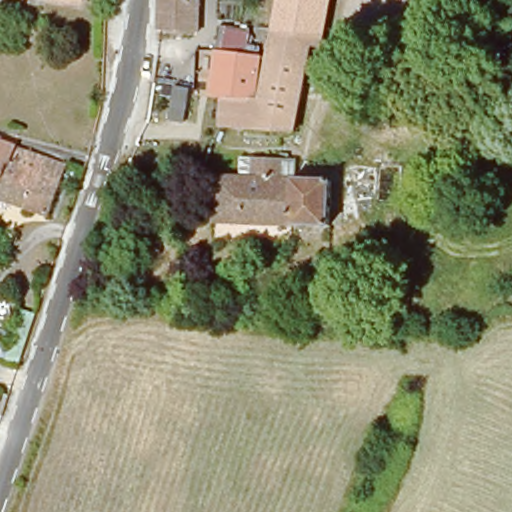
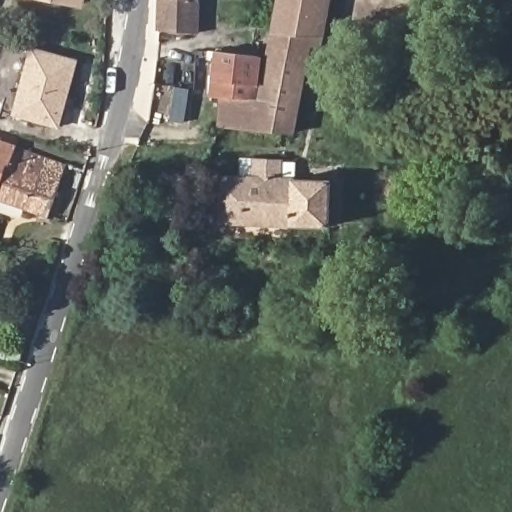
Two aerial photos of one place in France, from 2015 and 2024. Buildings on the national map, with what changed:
unchanged [(52,0),(83,0),(82,6),(52,0)]
unchanged [(198,31),(160,28),(162,0),(199,0),(198,30),(198,31)]
unchanged [(308,46),(271,38),(278,0),(328,0),(319,46),(308,46)]
unchanged [(254,101),(256,101),(259,101),(271,38),(308,46),(292,133),(217,126),(219,98),(254,101)]
new [(30,47),(79,60),(60,129),(12,116),(30,47)]
unchanged [(211,80),(214,50),(214,49),(239,55),(258,57),(255,79),(254,101),(219,98),(220,81),(211,80)]
unchanged [(167,88),(186,90),(182,127),(164,125),(167,88)]
unchanged [(20,153),(25,155),(46,161),(29,214),(8,206),(0,203),(0,145),(20,153)]
unchanged [(328,229),(209,224),(211,175),(246,177),(248,159),(294,161),(293,179),(331,180),(328,229)]
unchanged [(68,170),(50,222),(29,214),(46,161),(68,170)]
unchanged [(5,295),(15,261),(38,267),(27,302),(24,301),(5,295)]
unchanged [(17,334),(20,323),(32,327),(23,361),(0,353),(0,328),(17,334)]

